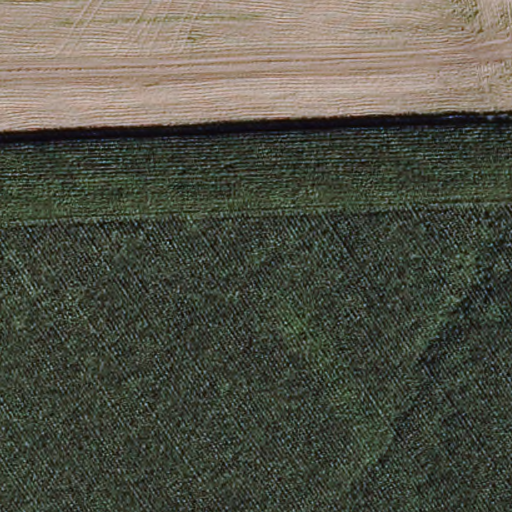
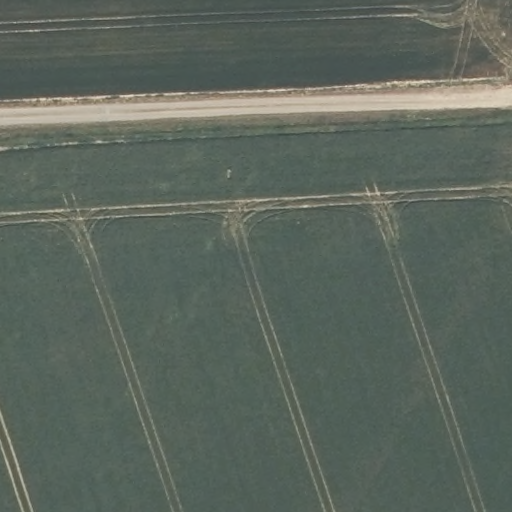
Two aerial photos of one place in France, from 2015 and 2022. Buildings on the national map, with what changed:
[]

